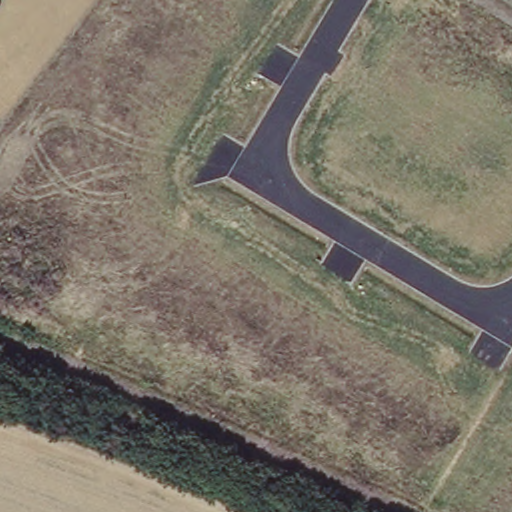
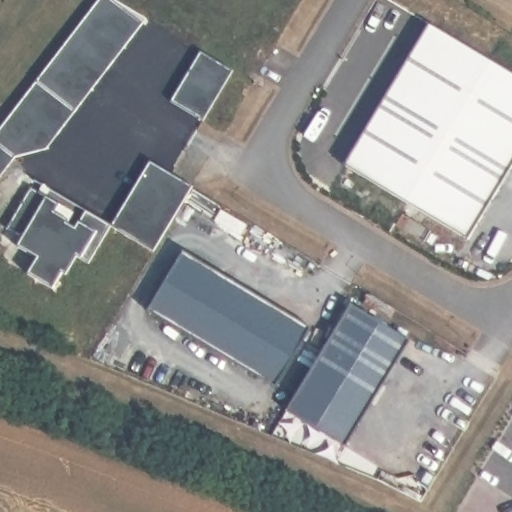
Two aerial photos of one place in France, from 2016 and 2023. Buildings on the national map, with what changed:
new [(47,148),(15,155),(0,175),(0,126),(97,0),(115,0),(144,21),(47,148)]
new [(343,165),(428,24),(512,73),(512,166),(468,239),(343,165)]
new [(171,100),(202,50),(234,69),(204,119),(171,100)]
new [(89,261),(74,252),(52,287),(27,271),(37,255),(17,244),(22,235),(7,225),(31,184),(61,202),(75,210),(70,219),(68,221),(76,225),(86,208),(112,223),(151,159),(194,185),(154,250),(111,224),(89,261)]
new [(147,309),(183,249),(311,326),(275,385),(147,309)]
new [(276,426),(350,303),(410,339),(335,462),(276,426)]

